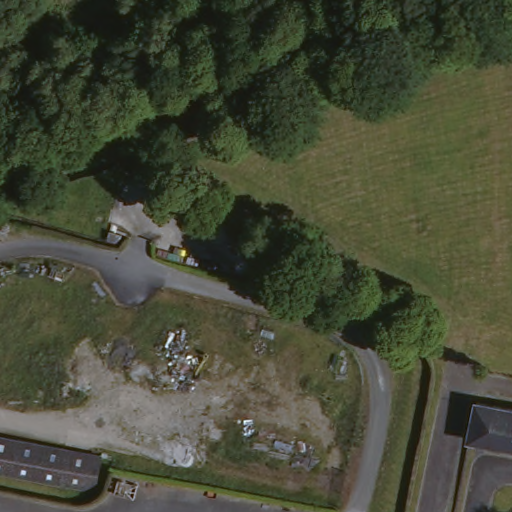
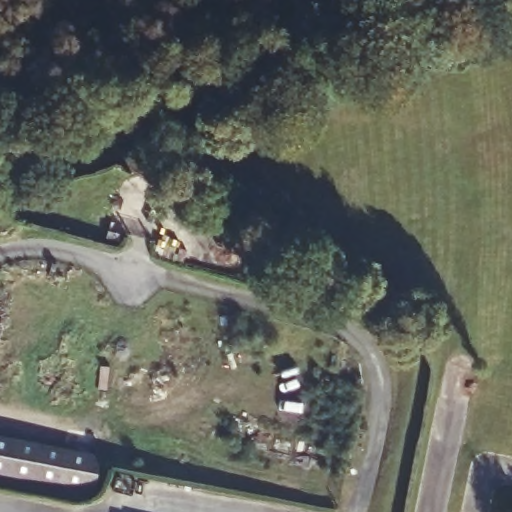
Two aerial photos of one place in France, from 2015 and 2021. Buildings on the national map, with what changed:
demolished [(512,411),(512,449),(469,440),(476,404),(512,411)]
unchanged [(99,487),(0,467),(0,431),(106,452),(99,487)]

